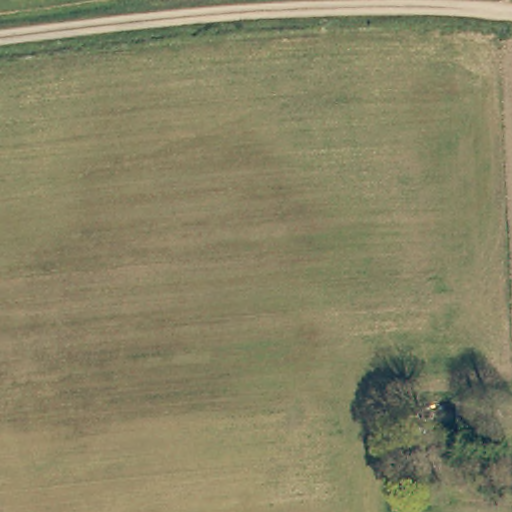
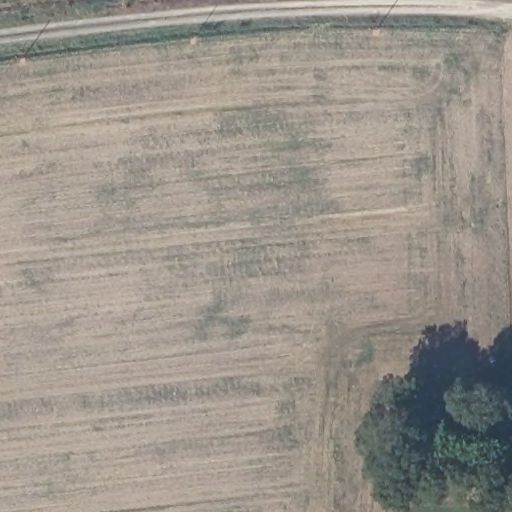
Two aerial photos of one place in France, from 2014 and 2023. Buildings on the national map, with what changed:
[]

